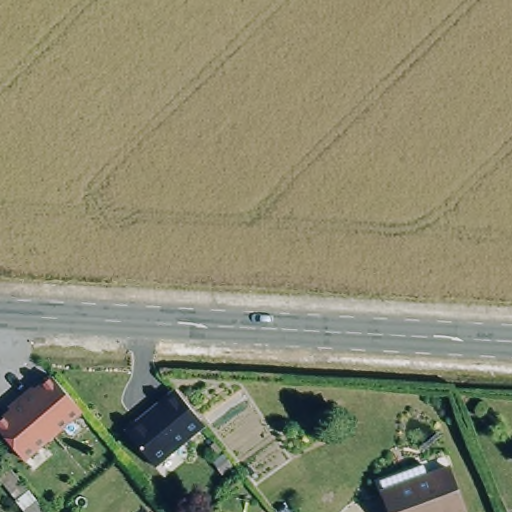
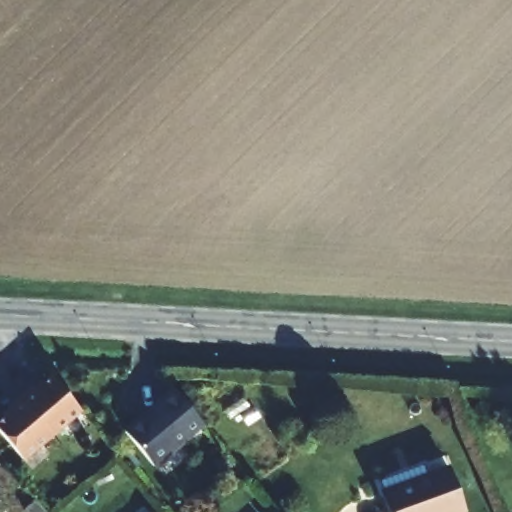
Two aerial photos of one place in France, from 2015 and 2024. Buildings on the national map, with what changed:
unchanged [(29,461),(0,430),(0,409),(45,371),(83,411),(29,461)]
unchanged [(202,425),(154,467),(120,428),(168,386),(202,425)]
unchanged [(465,512),(393,512),(387,493),(381,477),(427,463),(431,473),(453,466),(467,511),(465,512)]
unchanged [(51,512),(25,512),(25,511),(41,499),(51,512)]
unchanged [(152,512),(153,511),(153,512),(152,512)]

